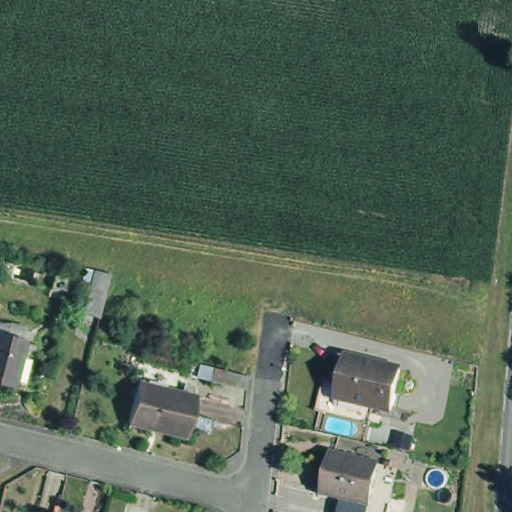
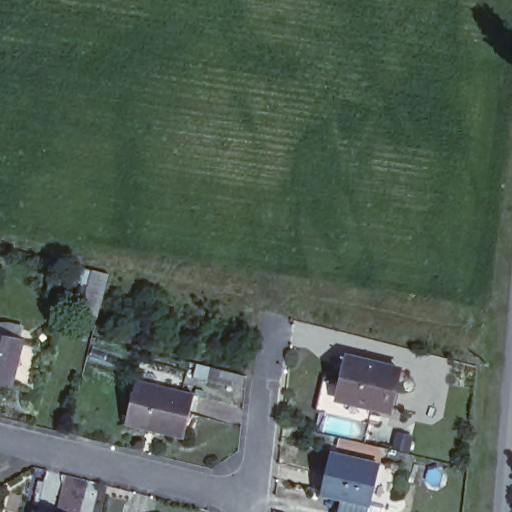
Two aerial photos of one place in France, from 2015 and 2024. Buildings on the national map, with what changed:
unchanged [(88,290),(79,287),(84,271),(93,273),(108,277),(97,320),(82,315),(88,290)]
unchanged [(0,383),(0,337),(21,342),(11,385),(0,383)]
unchanged [(409,355),(399,396),(383,392),(346,383),(350,366),(356,342),(409,355)]
unchanged [(135,382),(140,361),(186,372),(180,395),(135,382)]
unchanged [(383,392),(379,410),(324,397),(333,362),(350,366),(346,383),(383,392)]
unchanged [(236,372),(233,387),(198,378),(203,363),(236,372)]
unchanged [(193,398),(182,440),(124,425),(135,382),(180,395),(193,398)]
unchanged [(311,477),(321,437),(366,448),(356,488),(330,481),(311,477)]
unchanged [(356,488),(366,448),(387,453),(372,512),(365,512),(326,502),(330,481),(356,488)]
unchanged [(41,500),(82,510),(82,512),(38,512),(41,500)]

